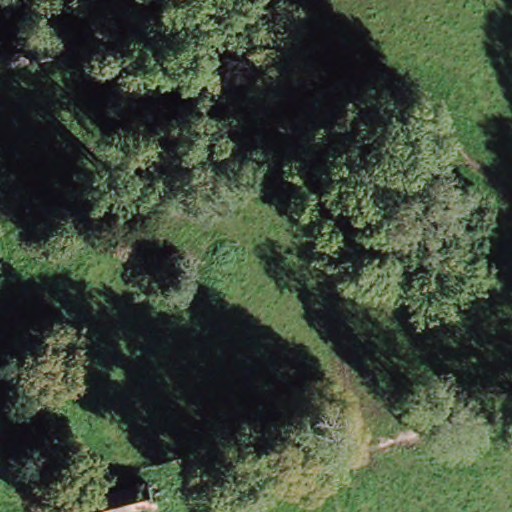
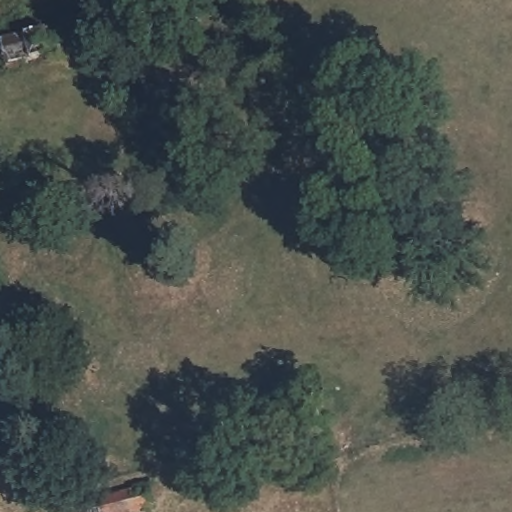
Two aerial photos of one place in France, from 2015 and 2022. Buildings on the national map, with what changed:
unchanged [(11,66),(4,39),(72,26),(79,51),(11,66)]
unchanged [(84,507),(84,502),(147,489),(153,512),(85,512),(84,507)]

